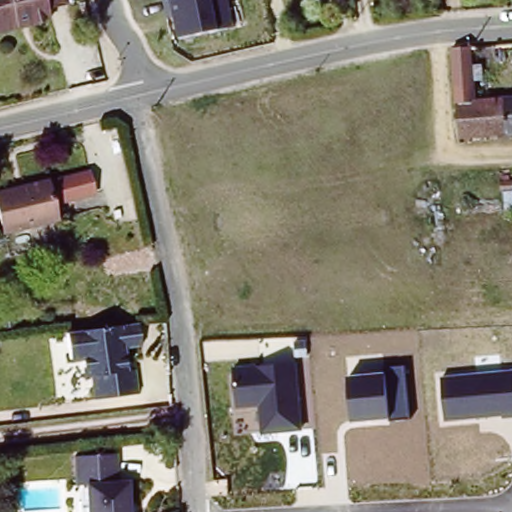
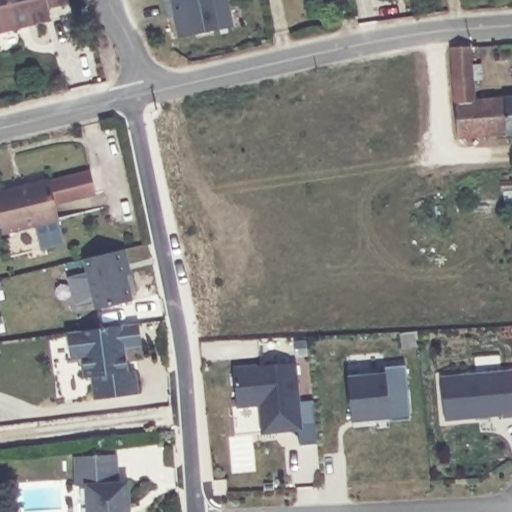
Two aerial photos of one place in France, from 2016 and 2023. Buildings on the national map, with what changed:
unchanged [(53,14),(54,23),(0,38),(0,0),(68,0),(70,9),(53,14)]
unchanged [(234,26),(172,38),(169,16),(164,16),(161,0),(228,0),(234,26)]
unchanged [(453,86),(450,53),(471,51),(474,85),(475,102),(512,99),(512,138),(458,141),(453,86)]
unchanged [(90,170),(94,194),(51,206),(45,184),(90,170)]
unchanged [(45,184),(55,222),(3,236),(0,224),(0,195),(45,184)]
unchanged [(501,187),(512,186),(512,193),(502,195),(501,187)]
new [(90,274),(87,260),(127,250),(131,266),(126,266),(134,302),(100,310),(98,303),(78,308),(71,278),(90,274)]
unchanged [(144,342),(126,345),(129,367),(136,366),(138,390),(97,396),(94,372),(87,373),(84,354),(73,355),(69,329),(141,320),(144,342)]
unchanged [(261,435),(258,407),(236,409),(233,367),(298,362),(303,430),(261,435)]
unchanged [(348,375),(386,371),(386,367),(404,365),(409,418),(351,423),(348,375)]
unchanged [(512,370),(512,414),(444,421),(440,376),(512,370)]
unchanged [(129,477),(132,512),(90,512),(87,485),(78,485),(74,457),(118,453),(119,477),(129,477)]

